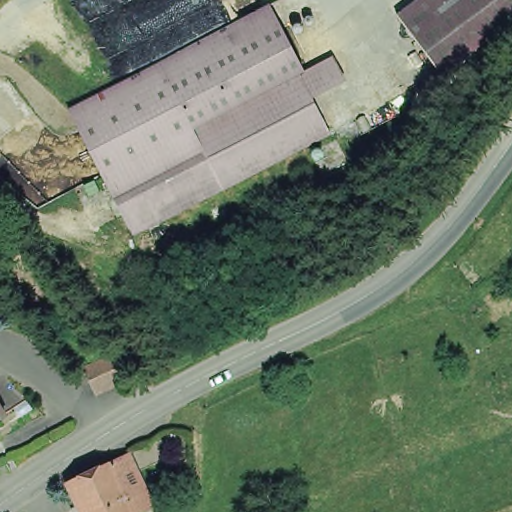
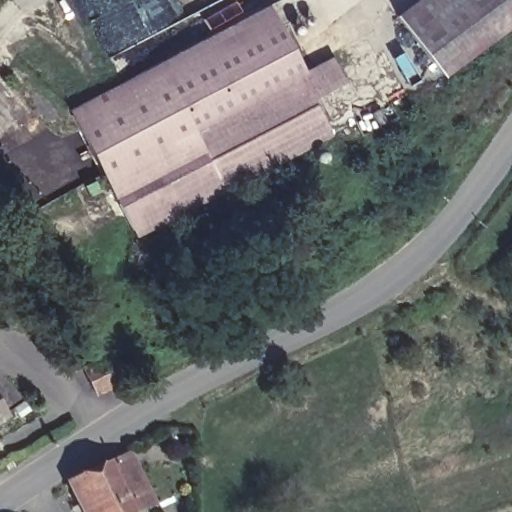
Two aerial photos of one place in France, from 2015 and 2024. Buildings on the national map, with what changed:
unchanged [(444,77),(395,13),(413,0),(512,0),(512,26),(444,77)]
unchanged [(306,71),(335,56),(350,84),(315,101),(335,137),(135,239),(67,107),(273,3),(306,71)]
unchanged [(125,376),(96,390),(86,367),(115,354),(125,376)]
unchanged [(0,412),(0,395),(7,407),(0,412)]
unchanged [(155,506),(142,512),(137,512),(112,460),(130,452),(155,506)]
unchanged [(112,460),(137,512),(85,512),(70,480),(112,460)]

